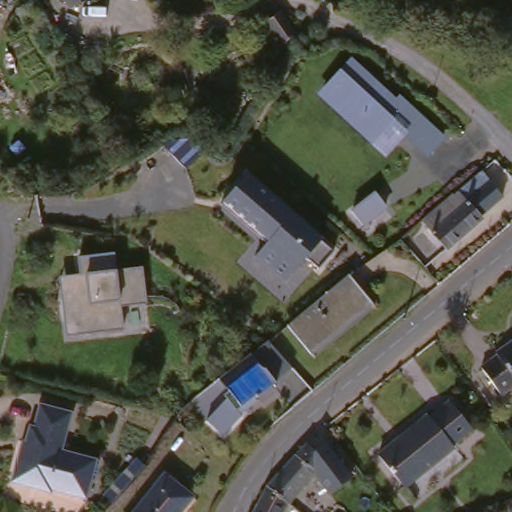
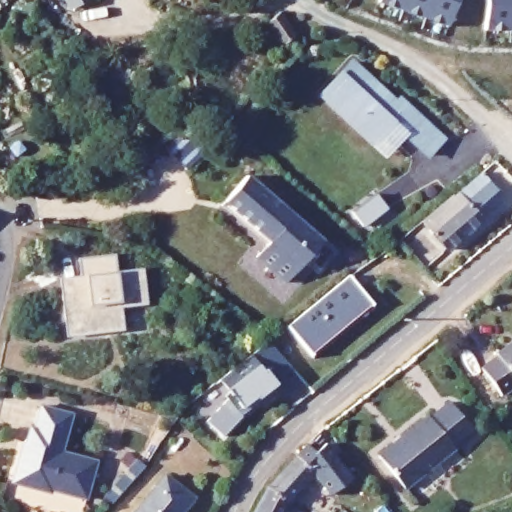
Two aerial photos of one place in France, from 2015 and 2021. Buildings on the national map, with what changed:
unchanged [(62,19),(52,0),(80,0),(84,8),(62,19)]
new [(379,0),(455,0),(448,25),(379,0)]
new [(487,28),(487,0),(512,0),(512,28),(487,28)]
unchanged [(264,28),(274,21),(291,44),(282,50),(276,54),(260,30),(264,28)]
unchanged [(397,99),(441,138),(426,155),(388,121),(372,140),(320,93),(348,61),(393,102),(397,99)]
unchanged [(178,139),(200,138),(211,150),(192,168),(169,144),(178,139)]
unchanged [(266,243),(222,201),(251,171),(326,239),(290,283),(256,258),(266,243)]
unchanged [(428,220),(453,200),(457,197),(458,199),(481,178),(503,203),(481,222),(483,224),(448,253),(423,226),(428,220)]
unchanged [(65,317),(62,289),(61,275),(80,273),(78,257),(113,252),(116,269),(142,267),(146,302),(121,304),(123,328),(86,332),(68,334),(65,317)]
unchanged [(369,314),(306,362),(281,328),(344,279),(369,314)]
unchanged [(276,382),(241,411),(244,416),(221,437),(206,419),(228,398),(224,394),(229,390),(220,379),(269,343),(293,368),(276,382)]
unchanged [(502,407),(482,379),(503,364),(501,363),(512,355),(512,400),(502,407)]
unchanged [(70,413),(59,452),(94,462),(84,498),(50,488),(49,491),(11,481),(20,447),(23,448),(29,426),(33,427),(39,404),(70,413)]
unchanged [(460,452),(461,453),(411,495),(384,464),(434,423),(436,424),(455,408),(479,436),(460,452)]
unchanged [(301,457),(306,453),(313,461),(324,454),(350,488),(331,504),(329,506),(308,486),(309,484),(299,474),(304,469),(296,462),(301,457)]
new [(139,456),(147,462),(139,473),(114,501),(107,493),(139,456)]
unchanged [(264,495),(296,462),(304,469),(299,474),(309,484),(308,486),(285,512),(280,512),(262,499),(264,495)]
unchanged [(186,509),(183,512),(140,512),(163,483),(175,492),(176,491),(188,500),(183,507),(186,509)]
unchanged [(262,499),(280,512),(254,512),(262,499)]

